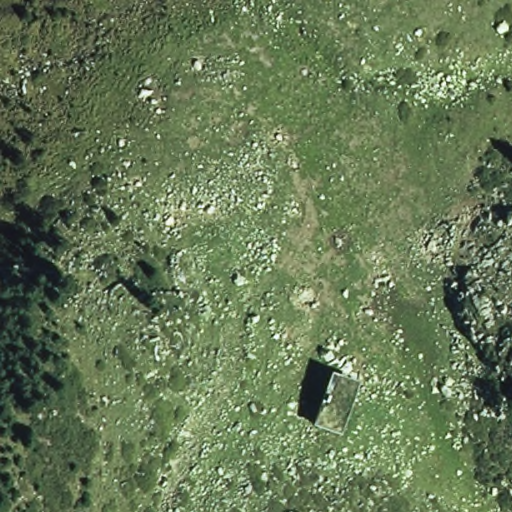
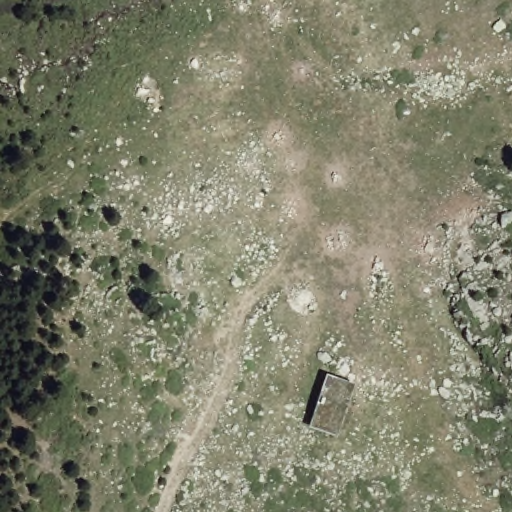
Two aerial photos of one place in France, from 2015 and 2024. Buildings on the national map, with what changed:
unchanged [(335,438),(310,431),(324,380),(352,389),(335,438)]

